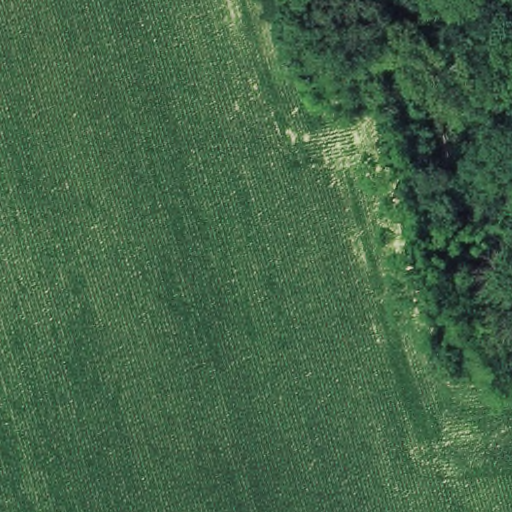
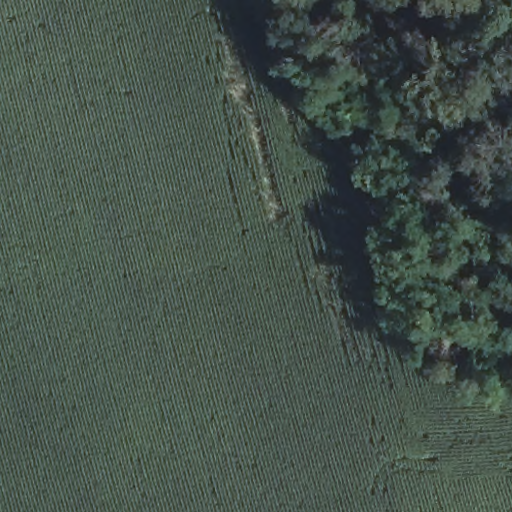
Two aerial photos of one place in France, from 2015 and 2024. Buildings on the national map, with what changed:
[]

